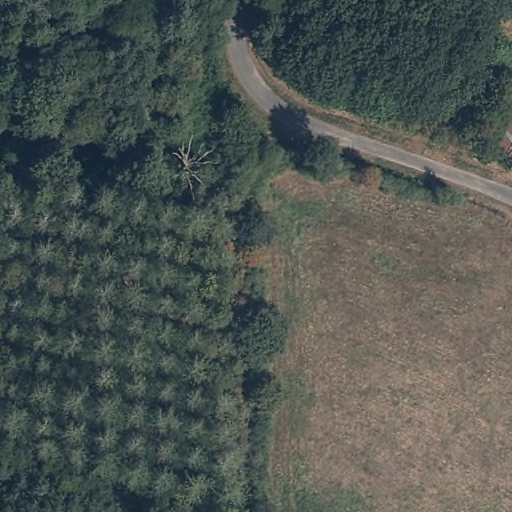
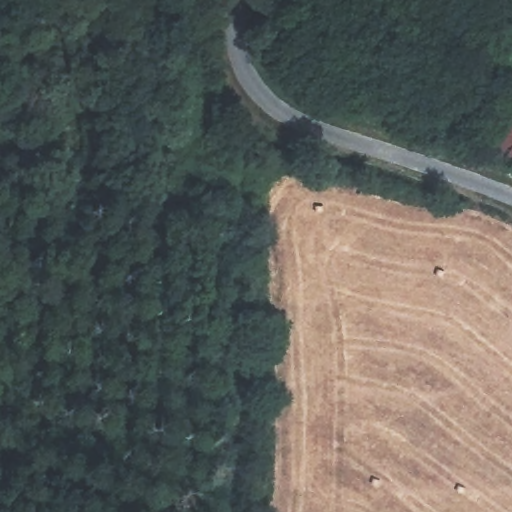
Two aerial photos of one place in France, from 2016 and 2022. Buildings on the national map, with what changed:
unchanged [(512,98),(512,154),(487,137),(512,98)]

